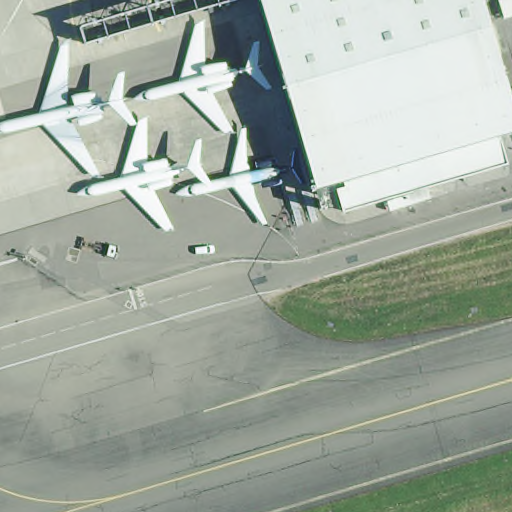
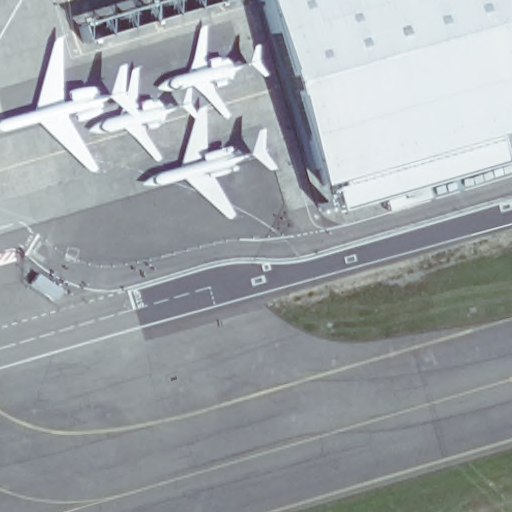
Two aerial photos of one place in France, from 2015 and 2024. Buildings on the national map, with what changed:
unchanged [(512,83),(512,135),(500,138),(512,166),(345,212),(339,181),(325,201),(269,0),(493,0),(512,83)]

